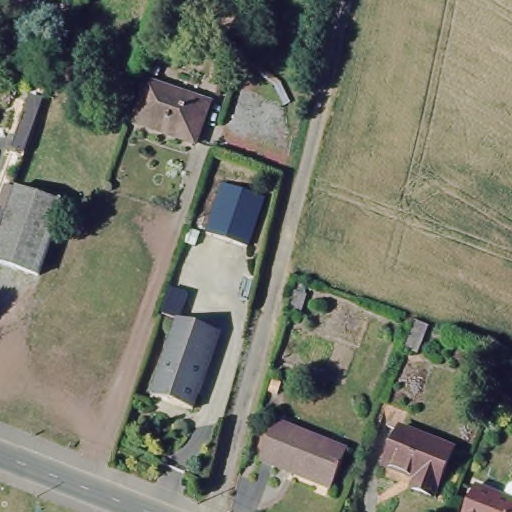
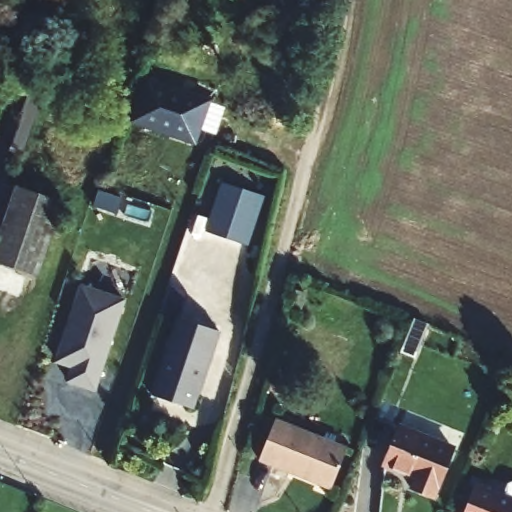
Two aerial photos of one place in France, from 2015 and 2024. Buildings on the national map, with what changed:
demolished [(99,35),(76,103),(47,93),(70,24),(99,35)]
unchanged [(209,99),(196,140),(135,120),(149,79),(209,99)]
unchanged [(225,176),(265,189),(249,239),(209,226),(225,176)]
unchanged [(60,201),(36,272),(0,262),(0,234),(12,198),(16,186),(60,201)]
new [(81,284),(125,300),(96,393),(65,383),(71,371),(55,362),(81,284)]
unchanged [(180,316),(222,330),(205,383),(203,383),(196,408),(155,394),(180,316)]
unchanged [(417,321),(431,326),(418,356),(405,350),(417,321)]
unchanged [(328,489),(259,460),(274,425),(343,454),(328,489)]
unchanged [(399,429),(452,450),(433,499),(411,490),(416,477),(385,465),(399,429)]
unchanged [(512,502),(512,512),(467,512),(477,487),(512,502)]

